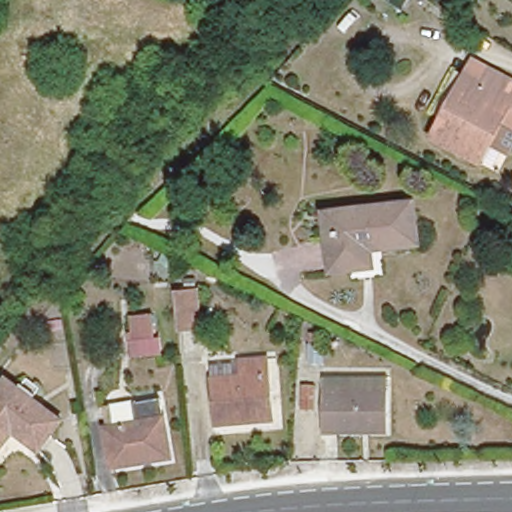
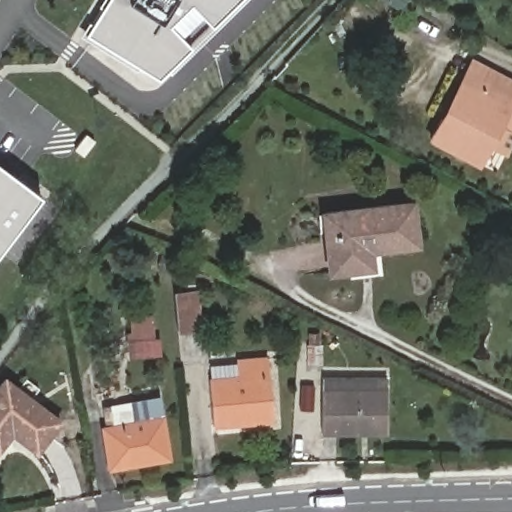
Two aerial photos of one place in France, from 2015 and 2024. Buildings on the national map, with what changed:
new [(242,0),(160,80),(86,34),(107,0),(242,0)]
unchanged [(512,84),(512,131),(502,125),(479,166),(429,139),(440,118),(463,76),(472,81),(479,66),(512,84)]
new [(0,250),(0,165),(41,196),(0,250)]
unchanged [(359,268),(332,272),(325,212),(413,202),(418,244),(373,250),(374,267),(359,268)]
unchanged [(197,290),(199,328),(179,329),(175,293),(197,290)]
unchanged [(143,315),(145,340),(150,340),(151,356),(121,359),(120,343),(124,343),(122,318),(143,315)]
unchanged [(62,318),(63,320),(65,338),(51,340),(47,320),(62,318)]
unchanged [(327,347),(326,368),(309,368),(309,347),(327,347)]
unchanged [(271,368),(278,429),(222,434),(219,389),(217,375),(245,372),(245,371),(271,368)]
unchanged [(0,445),(0,390),(9,378),(65,419),(43,448),(21,433),(7,451),(0,446),(0,445)]
unchanged [(385,432),(324,432),(324,389),(386,390),(385,432)]
unchanged [(159,398),(169,458),(111,468),(105,427),(106,427),(116,425),(113,407),(134,403),(135,403),(159,398)]

